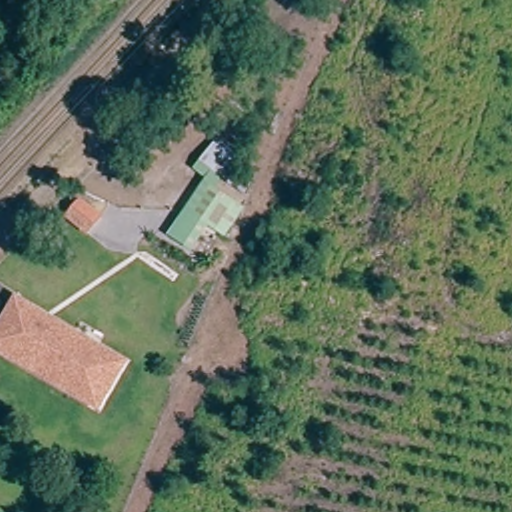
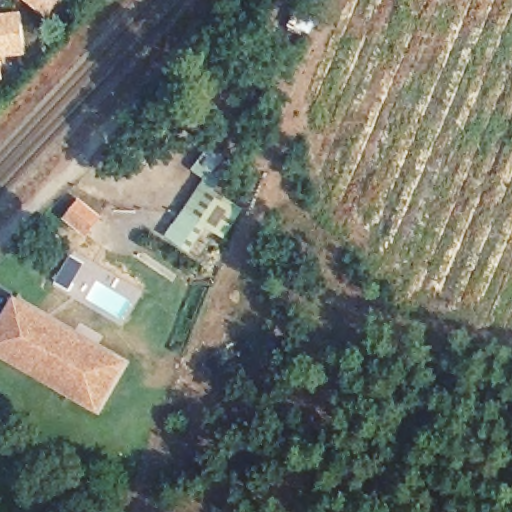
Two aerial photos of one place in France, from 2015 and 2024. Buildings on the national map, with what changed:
new [(27,0),(63,0),(48,18),(27,0)]
new [(24,10),(29,53),(2,55),(6,80),(0,81),(0,14),(24,10)]
unchanged [(206,128),(264,165),(248,190),(221,173),(215,179),(182,160),(206,128)]
unchanged [(202,182),(246,207),(227,235),(210,227),(191,253),(167,237),(202,182)]
unchanged [(130,364),(100,411),(0,355),(0,324),(17,297),(130,364)]

